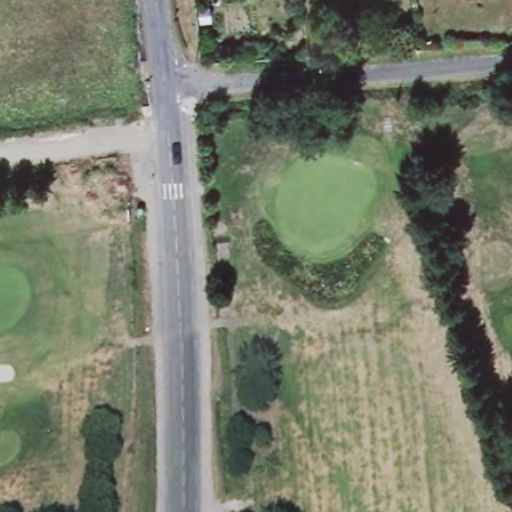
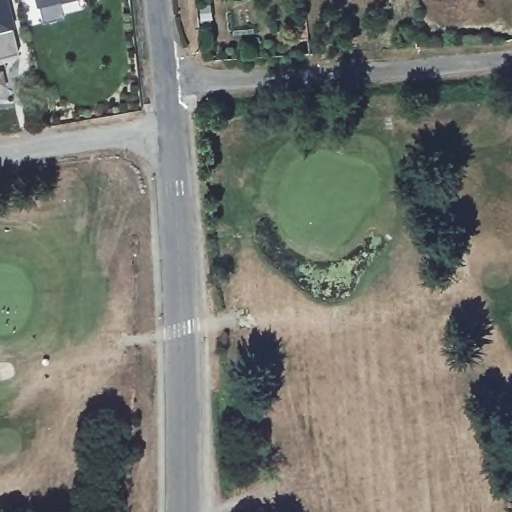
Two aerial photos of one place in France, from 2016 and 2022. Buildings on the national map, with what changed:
new [(16,53),(0,57),(0,0),(4,0),(16,53)]
new [(58,0),(62,18),(41,22),(35,0),(60,0),(58,0)]

